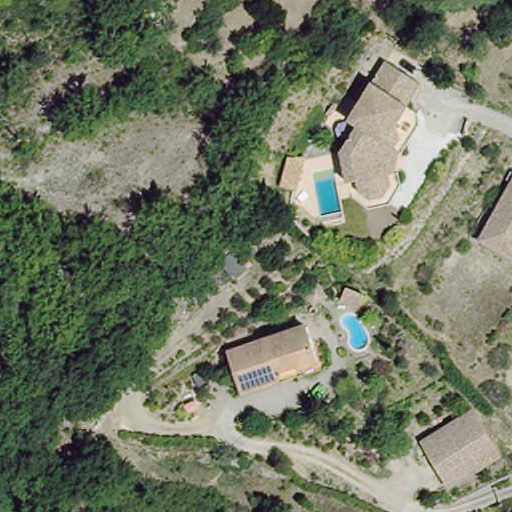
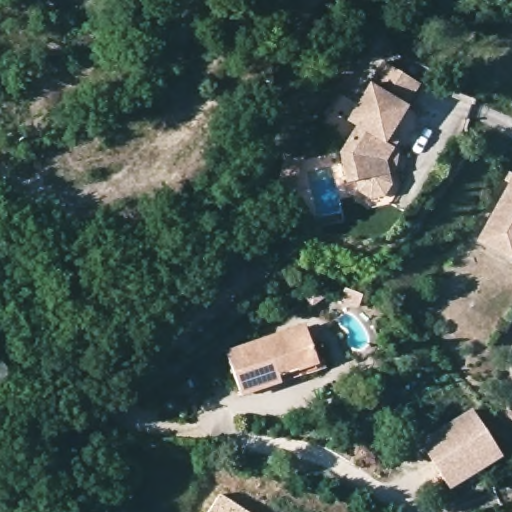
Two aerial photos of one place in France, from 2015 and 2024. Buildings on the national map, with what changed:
unchanged [(423,84),(411,103),(415,104),(399,130),(404,134),(389,159),(395,179),(390,194),(374,197),(363,190),(361,181),(352,180),(344,153),(361,124),(353,120),(363,104),(388,63),(423,84)]
unchanged [(287,156),(306,158),(299,189),(278,186),(287,156)]
unchanged [(482,242),(512,187),(512,258),(509,257),(482,242)]
unchanged [(238,390),(226,354),(303,329),(317,370),(297,377),(277,383),(240,396),(238,390)]
unchanged [(472,413),(499,454),(449,485),(424,444),(472,413)]
new [(221,493),(249,512),(207,512),(221,493)]

